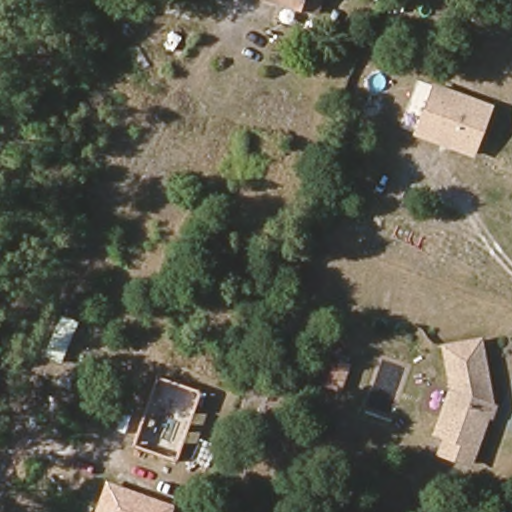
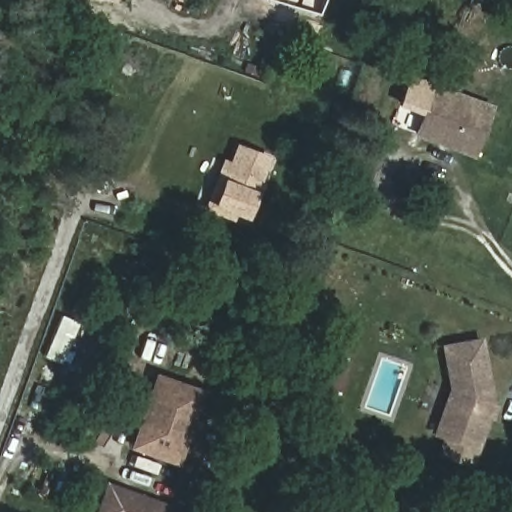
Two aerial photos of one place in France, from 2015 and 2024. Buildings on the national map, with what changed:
unchanged [(272,1),(273,0),(314,0),(308,15),(272,1)]
unchanged [(477,158),(415,137),(435,83),(495,105),(477,158)]
new [(237,143),(271,157),(258,190),(247,219),(237,216),(235,220),(205,210),(224,159),(229,161),(237,143)]
unchanged [(446,456),(452,440),(441,437),(456,392),(445,351),(481,343),(496,405),(481,450),(476,466),(446,456)]
unchanged [(341,395),(316,387),(327,355),(352,364),(341,395)]
unchanged [(157,375),(204,392),(179,464),(132,448),(157,375)]
unchanged [(107,481),(176,505),(174,512),(96,512),(107,481)]

